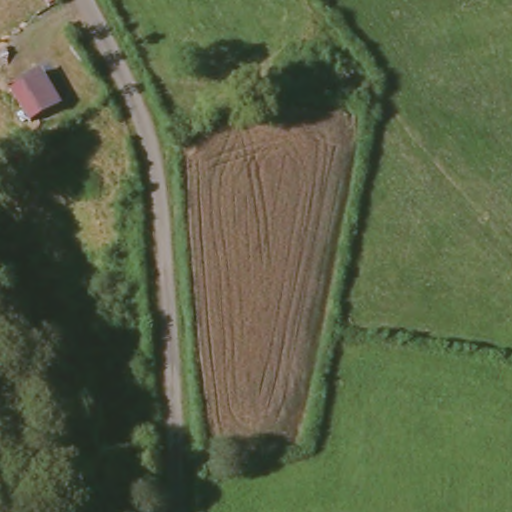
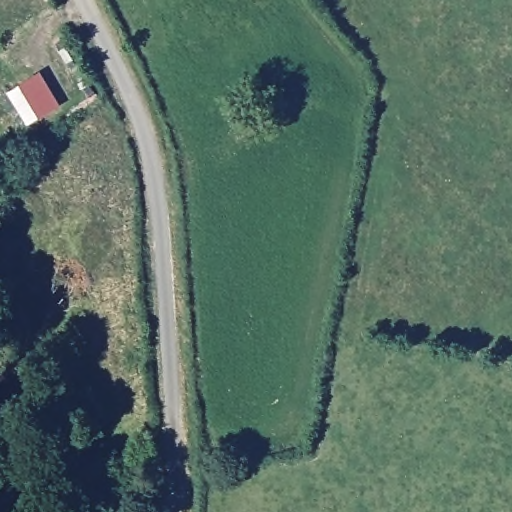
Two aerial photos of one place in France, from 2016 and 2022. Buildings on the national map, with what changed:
unchanged [(39,69),(59,100),(40,112),(21,80),(39,69)]

